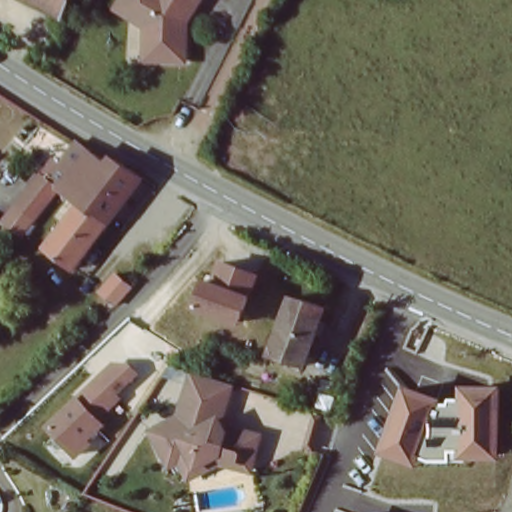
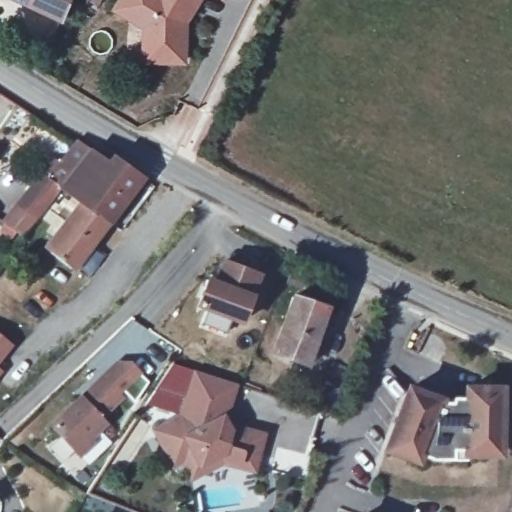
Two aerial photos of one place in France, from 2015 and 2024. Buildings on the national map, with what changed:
unchanged [(61,19),(25,0),(69,0),(61,19)]
unchanged [(170,61),(145,59),(147,26),(118,7),(122,0),(201,0),(195,11),(187,22),(186,43),(185,62),(170,61)]
unchanged [(60,190),(22,236),(3,219),(54,159),(61,163),(77,141),(91,150),(60,190)]
unchanged [(60,190),(91,150),(96,143),(145,175),(107,227),(79,205),(60,190)]
unchanged [(107,227),(72,271),(44,249),(79,205),(107,227)]
unchanged [(263,273),(255,294),(244,321),(198,307),(209,277),(215,280),(223,258),(263,273)]
unchanged [(90,307),(117,276),(132,288),(103,320),(90,307)]
unchanged [(271,354),(293,294),(325,306),(304,365),(271,354)]
new [(0,362),(0,335),(13,345),(0,362)]
unchanged [(133,361),(142,372),(125,390),(129,396),(106,417),(112,423),(95,437),(97,442),(81,457),(52,423),(80,397),(114,361),(133,361)]
new [(0,374),(0,368),(3,371),(0,374)]
unchanged [(192,374),(240,383),(230,415),(238,426),(270,433),(261,471),(222,467),(195,480),(189,466),(173,472),(151,432),(182,411),(192,374)]
unchanged [(502,457),(453,457),(453,461),(433,460),(423,456),(419,467),(380,452),(405,385),(444,398),(443,402),(451,402),(452,397),(462,397),(462,386),(504,385),(502,457)]

